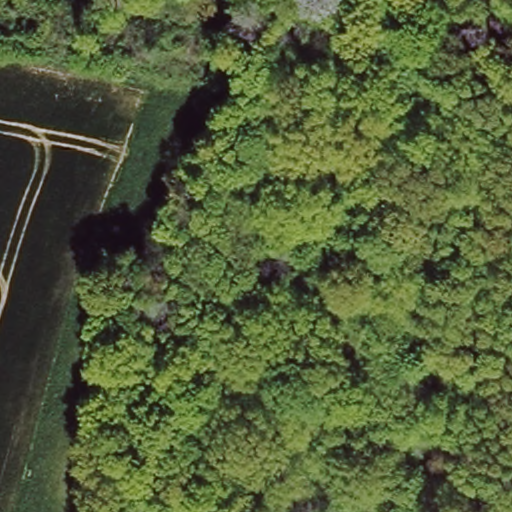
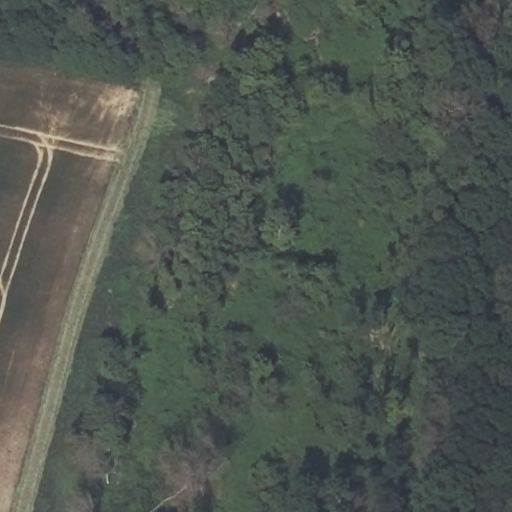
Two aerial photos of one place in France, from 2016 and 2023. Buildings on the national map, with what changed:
unchanged [(512,56),(512,82),(506,58),(512,56)]

